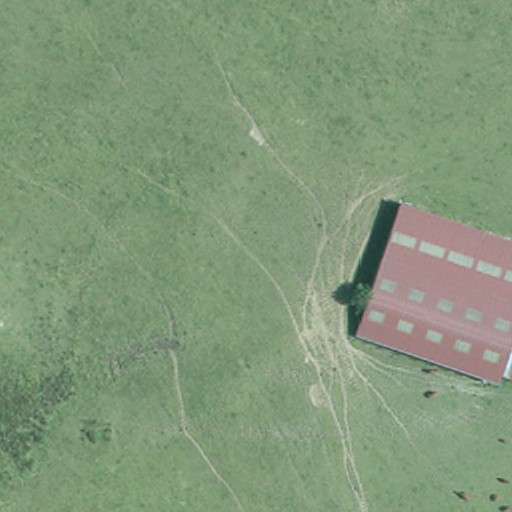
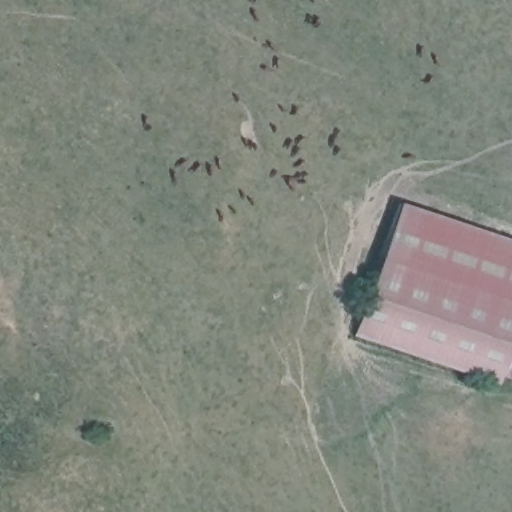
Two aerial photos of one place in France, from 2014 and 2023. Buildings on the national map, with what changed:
unchanged [(512,382),(489,371),(485,380),(349,316),(408,190),(512,238),(512,382)]

